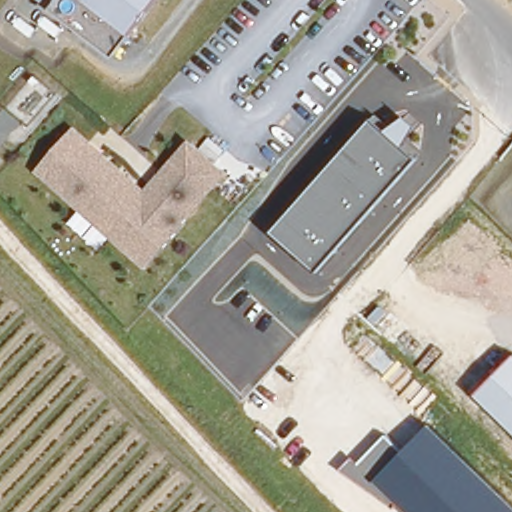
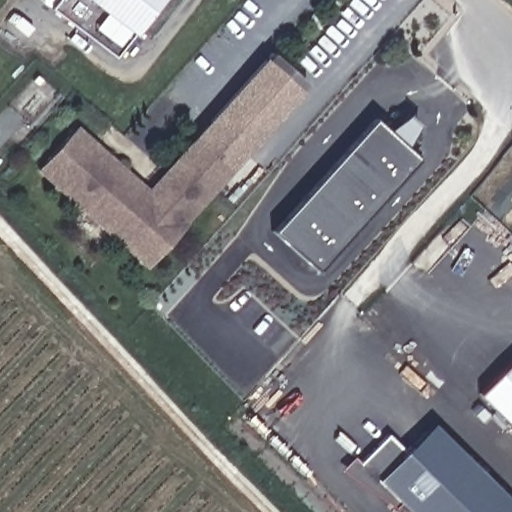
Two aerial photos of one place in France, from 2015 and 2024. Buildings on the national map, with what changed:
unchanged [(134,33),(115,55),(52,10),(59,0),(159,0),(134,33)]
new [(194,139),(264,57),(301,90),(231,173),(194,139)]
unchanged [(389,131),(408,115),(418,123),(406,145),(419,156),(318,269),(275,231),(375,118),(389,131)]
unchanged [(147,267),(36,171),(78,123),(150,187),(194,139),(231,173),(147,267)]
unchanged [(512,427),(478,394),(512,360),(512,427)]
unchanged [(395,507),(342,468),(357,456),(362,462),(389,434),(407,449),(434,421),(512,498),(512,512),(408,512),(399,502),(395,507)]

